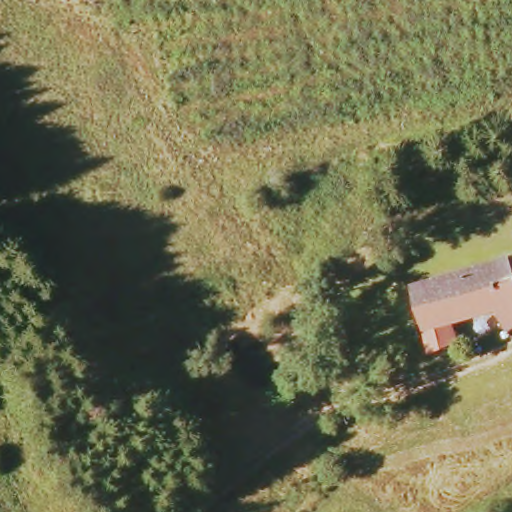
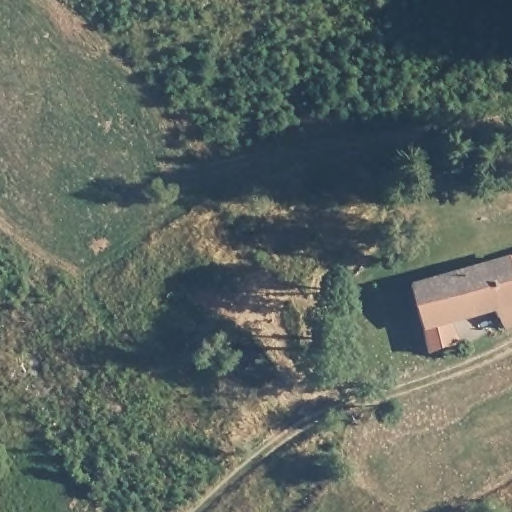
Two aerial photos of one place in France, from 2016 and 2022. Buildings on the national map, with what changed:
unchanged [(494,302),(447,317),(453,337),(430,352),(411,285),(507,257),(512,272),(512,320),(501,323),(494,302)]

